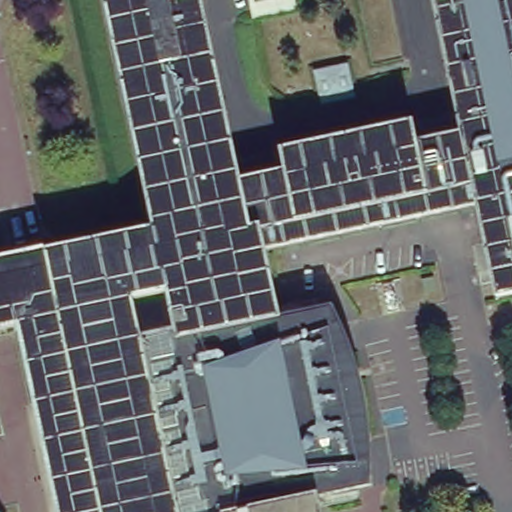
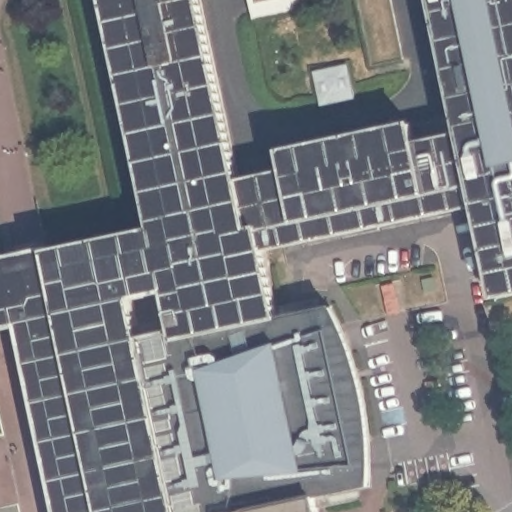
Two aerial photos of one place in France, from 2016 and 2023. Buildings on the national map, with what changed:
unchanged [(46,250),(46,252),(154,229),(106,0),(201,0),(239,182),(286,172),(282,152),(412,124),(415,145),(461,135),(433,0),(512,0),(512,294),(496,297),(477,204),(265,249),(279,318),(330,308),(338,326),(353,364),(361,394),(367,424),(369,455),(369,486),(317,497),(321,512),(59,512),(18,324),(0,328),(0,260),(46,250)]
unchanged [(248,0),(296,0),(297,8),(251,17),(248,0)]
unchanged [(314,72),(348,65),(355,97),(322,103),(314,72)]

